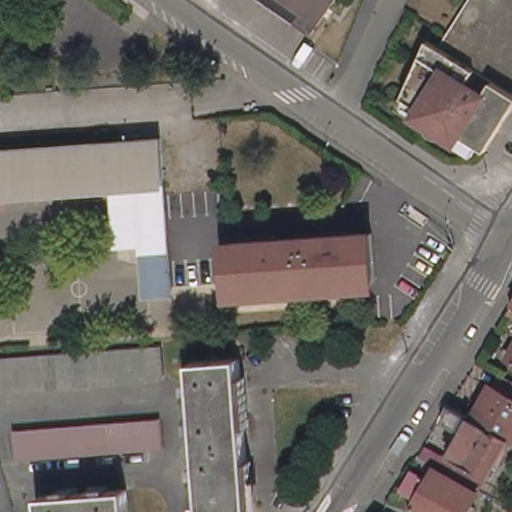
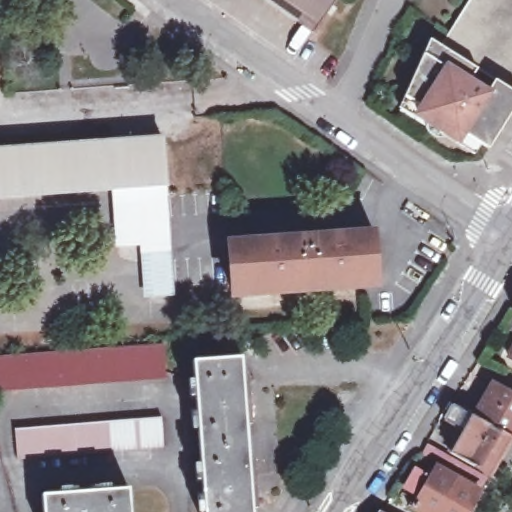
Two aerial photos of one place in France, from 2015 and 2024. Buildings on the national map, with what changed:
unchanged [(273,0),(349,0),(324,37),(273,0)]
unchanged [(431,130),(435,123),(404,104),(429,46),(440,52),(472,0),(512,0),(512,117),(488,155),(462,139),(458,146),(431,130)]
unchanged [(168,131),(171,178),(116,182),(0,190),(0,144),(168,131)]
unchanged [(180,289),(150,291),(145,242),(122,243),(116,182),(171,178),(180,289)]
unchanged [(379,232),(382,281),(238,291),(235,242),(379,232)]
unchanged [(173,344),(175,378),(140,380),(0,390),(0,356),(173,344)]
unchanged [(245,352),(255,512),(210,512),(200,355),(245,352)]
unchanged [(455,451),(466,430),(449,420),(456,407),(457,406),(478,417),(479,415),(498,383),(502,385),(509,373),(512,375),(512,447),(497,474),(455,451)]
unchanged [(168,417),(170,448),(23,460),(21,428),(168,417)]
unchanged [(439,461),(434,469),(418,460),(423,452),(429,456),(434,446),(468,465),(463,475),(439,461)]
unchanged [(482,490),(470,512),(427,512),(420,508),(428,495),(411,486),(421,468),(437,477),(442,468),(482,490)]
unchanged [(129,489),(130,512),(45,512),(44,495),(129,489)]

